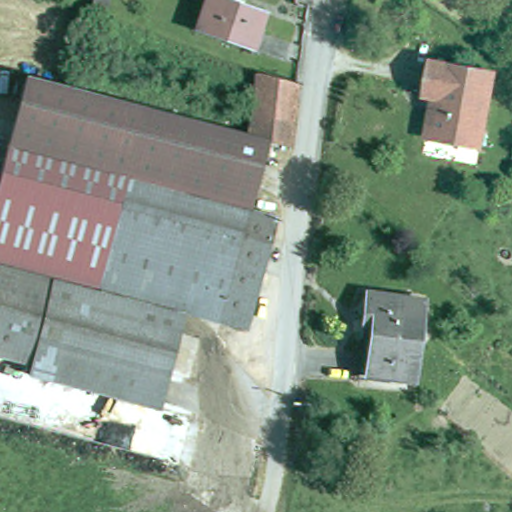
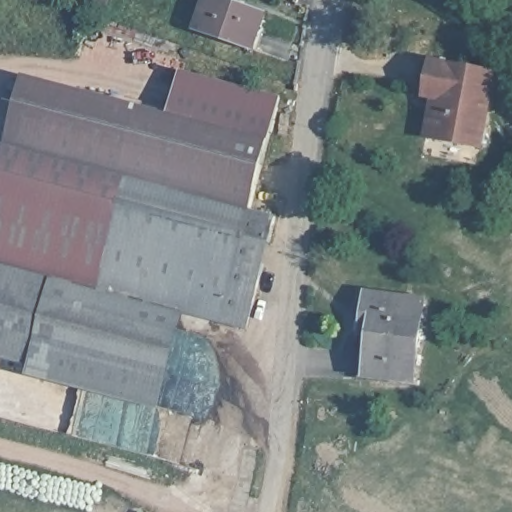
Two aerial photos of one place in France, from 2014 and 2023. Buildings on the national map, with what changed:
unchanged [(92,9),(94,0),(109,0),(106,13),(92,9)]
unchanged [(195,31),(205,0),(226,0),(263,13),(251,50),(195,31)]
unchanged [(427,98),(433,63),(492,73),(478,149),(461,146),(435,142),(428,141),(430,126),(434,100),(427,98)]
new [(251,136),(171,115),(179,69),(280,98),(272,142),(251,136)]
unchanged [(255,211),(279,218),(250,330),(188,314),(163,410),(31,375),(33,365),(0,356),(0,187),(29,76),(251,136),(272,142),(255,211)]
unchanged [(362,333),(363,322),(366,296),(420,301),(412,380),(366,375),(370,334),(362,333)]

